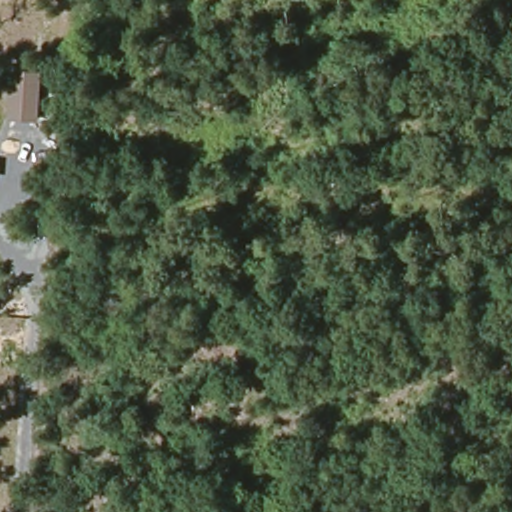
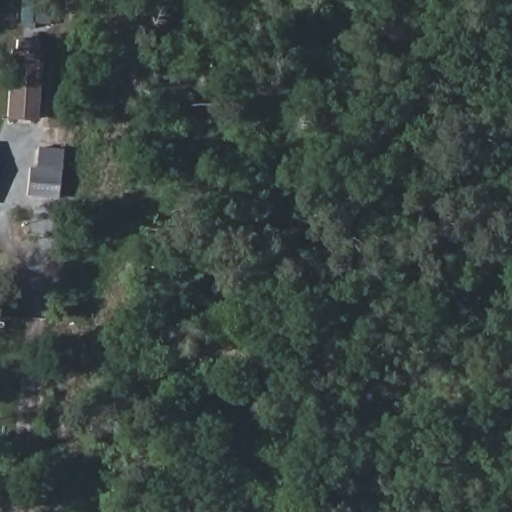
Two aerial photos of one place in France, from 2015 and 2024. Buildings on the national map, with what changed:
unchanged [(8,119),(11,69),(41,71),(38,122),(8,119)]
new [(30,197),(33,168),(38,169),(40,147),(65,149),(60,200),(30,197)]

